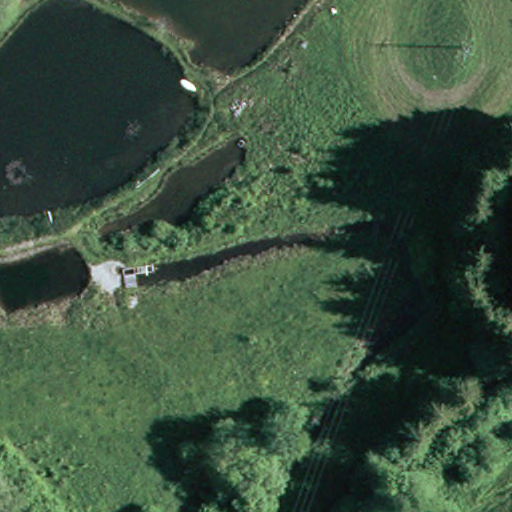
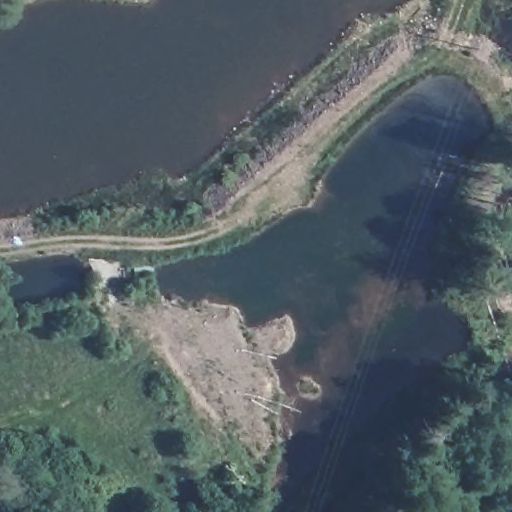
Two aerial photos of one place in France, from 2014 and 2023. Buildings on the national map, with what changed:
[]

